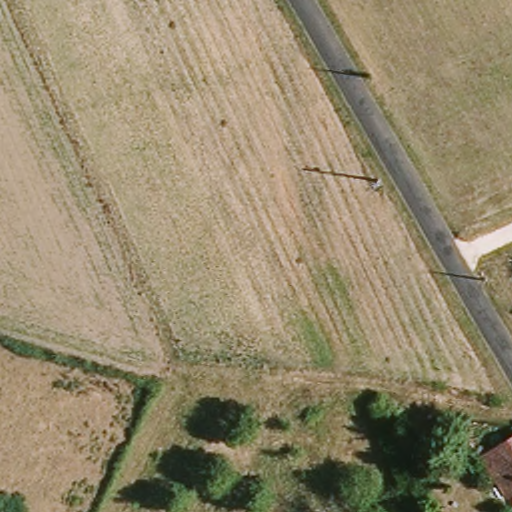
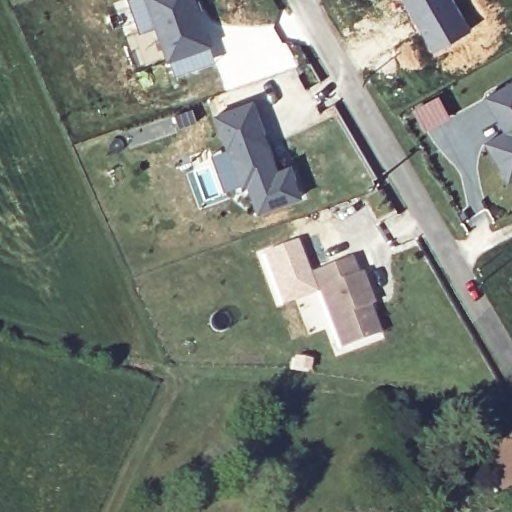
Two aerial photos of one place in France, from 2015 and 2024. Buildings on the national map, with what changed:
new [(167,61),(153,28),(138,34),(126,0),(199,0),(202,8),(212,45),(216,60),(173,75),(167,61)]
new [(430,52),(398,0),(456,0),(471,27),(430,52)]
new [(488,96),(512,82),(512,151),(498,159),(488,141),(507,130),(488,96)]
new [(438,94),(450,117),(425,131),(412,107),(438,94)]
new [(252,100),(277,168),(290,164),(301,194),(258,209),(248,181),(243,184),(229,145),(228,146),(216,113),(252,100)]
new [(350,259),(356,275),(359,273),(372,307),(367,308),(377,335),(336,351),(308,275),(350,259)]
unchanged [(512,440),(512,485),(493,451),(512,440)]

